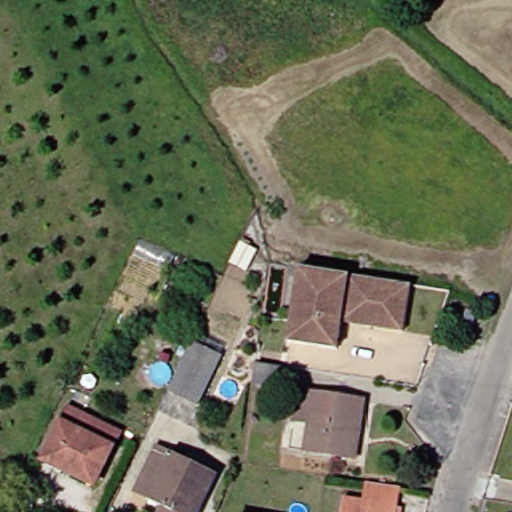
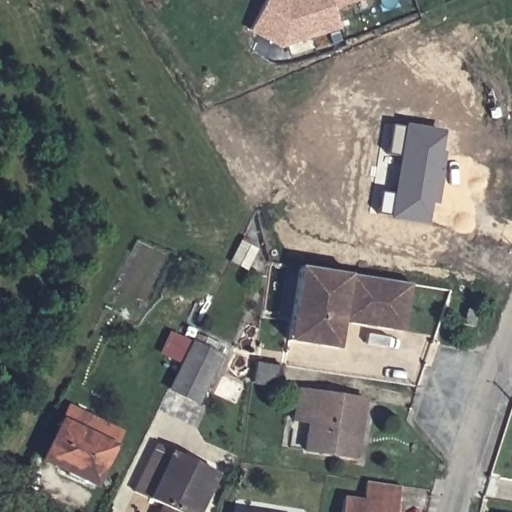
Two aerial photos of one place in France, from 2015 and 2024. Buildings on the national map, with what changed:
new [(268,0),(357,0),(334,8),(340,27),(282,47),(252,31),(268,0)]
new [(392,195),(398,156),(387,154),(391,126),(404,128),(404,124),(444,132),(440,152),(445,152),(438,205),(430,203),(427,224),(389,219),(389,216),(378,214),(381,192),(392,195)]
unchanged [(232,263),(243,242),(245,237),(253,242),(251,246),(258,249),(247,271),(232,263)]
unchanged [(411,284),(403,331),(342,322),(337,348),(288,341),(300,267),(369,277),(411,284)]
unchanged [(478,312),(475,327),(463,325),(466,309),(478,312)]
unchanged [(194,347),(198,339),(225,352),(221,361),(198,408),(171,395),(194,347)]
unchanged [(283,366),(280,387),(254,385),(257,362),(283,366)]
unchanged [(365,428),(358,427),(353,457),(310,451),(315,423),(300,421),(305,389),(370,398),(365,428)]
unchanged [(95,483),(45,459),(70,408),(119,432),(95,483)]
unchanged [(174,512),(176,510),(168,506),(140,492),(163,444),(224,473),(205,512),(174,512)]
unchanged [(346,512),(349,497),(369,501),(372,481),(407,487),(403,512),(346,512)]

